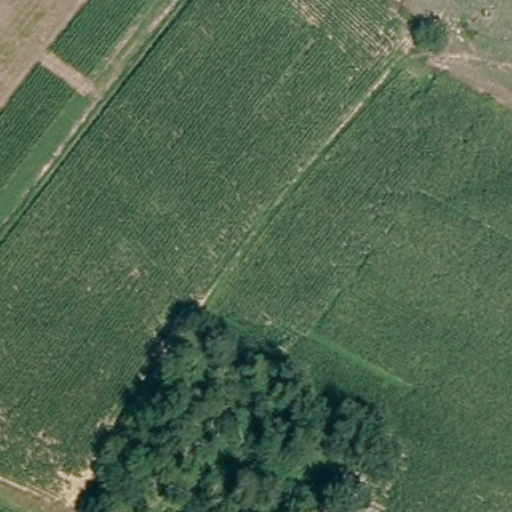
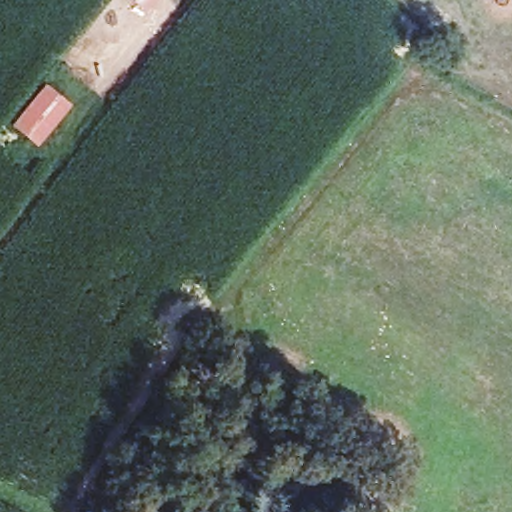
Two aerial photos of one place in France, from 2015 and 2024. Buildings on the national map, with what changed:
new [(73,107),(40,149),(14,129),(47,87),(73,107)]
unchanged [(2,91),(0,92),(0,89),(2,91)]

